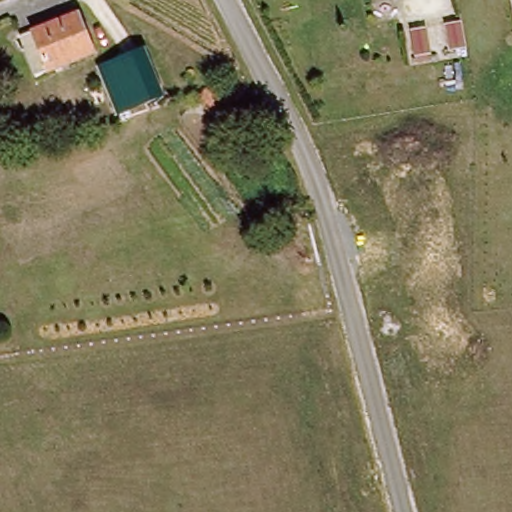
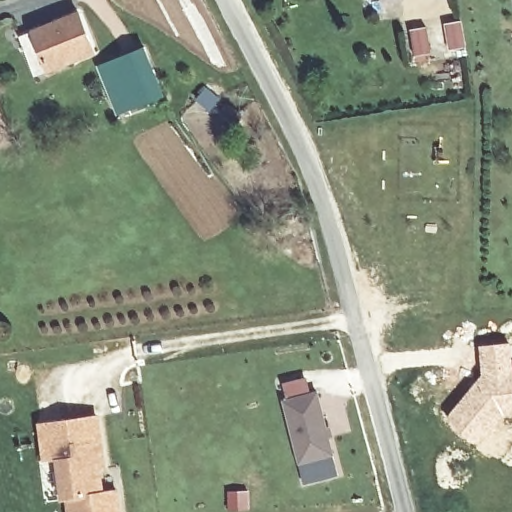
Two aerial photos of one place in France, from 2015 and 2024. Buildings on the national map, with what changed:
demolished [(480,35),(464,37),(460,10),(475,8),(480,35)]
unchanged [(107,47),(47,72),(29,35),(87,10),(107,47)]
demolished [(444,40),(429,43),(424,16),(440,14),(444,40)]
unchanged [(98,61),(130,50),(144,45),(149,58),(155,70),(160,90),(162,97),(119,113),(116,107),(98,61)]
new [(479,373),(477,344),(509,341),(512,359),(512,416),(504,417),(475,447),(443,419),(479,373)]
new [(289,399),(284,383),(307,376),(311,393),(319,390),(340,474),(304,485),(284,401),(289,399)]
new [(102,470),(105,490),(118,488),(122,512),(67,512),(65,501),(60,502),(54,461),(43,463),(38,423),(99,415),(108,469),(102,470)]

